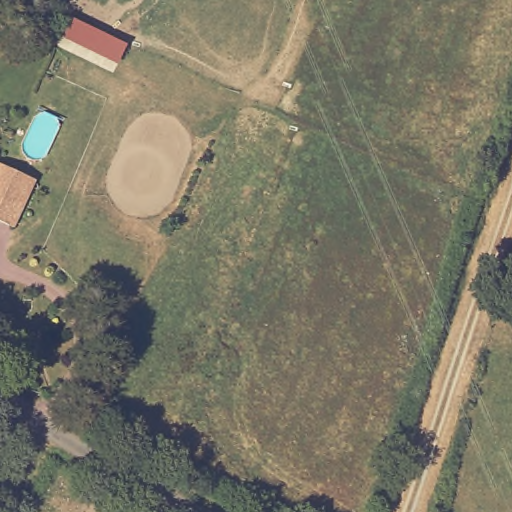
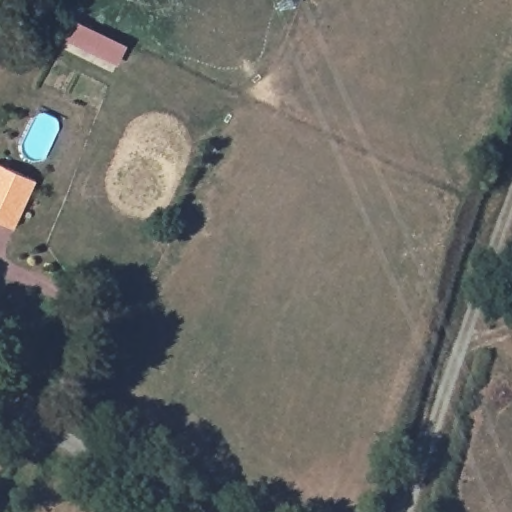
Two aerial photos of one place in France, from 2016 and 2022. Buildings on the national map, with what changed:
unchanged [(117,66),(56,37),(65,16),(125,47),(117,66)]
unchanged [(34,181),(11,229),(0,225),(0,167),(34,181)]

